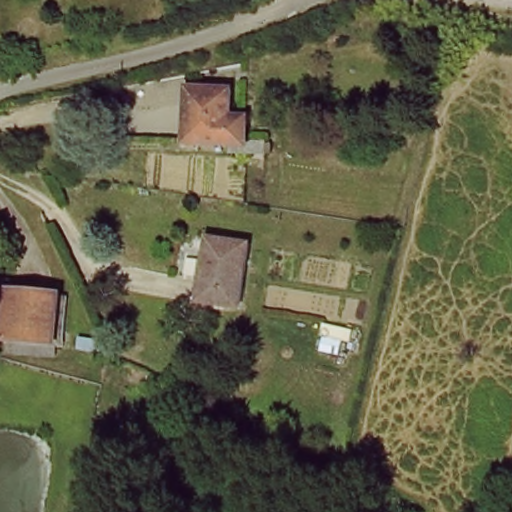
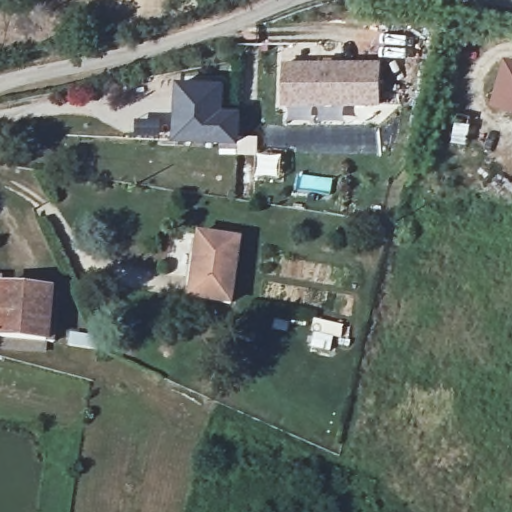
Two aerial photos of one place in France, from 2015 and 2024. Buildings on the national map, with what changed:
new [(283,61),(382,61),(382,107),(282,109),(283,61)]
new [(512,111),(496,106),(507,61),(512,63),(512,111)]
unchanged [(180,80),(220,81),(220,135),(180,133),(180,80)]
unchanged [(232,301),(191,298),(199,234),(237,235),(232,301)]
unchanged [(51,344),(0,337),(0,296),(1,286),(57,290),(51,344)]

